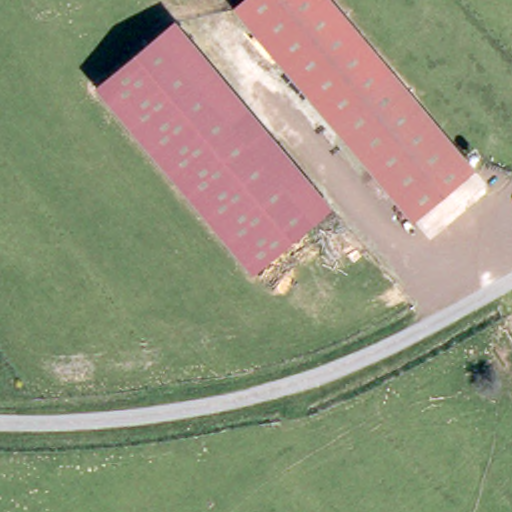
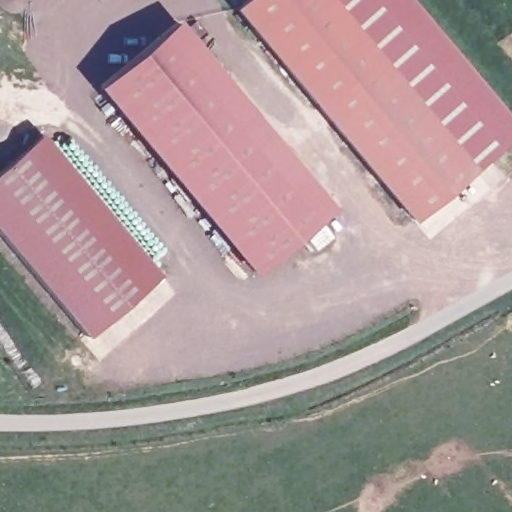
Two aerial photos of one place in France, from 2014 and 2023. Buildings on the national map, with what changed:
unchanged [(245,0),(334,0),(475,166),(414,215),(237,6),(245,0)]
new [(512,118),(512,138),(475,166),(334,0),(413,0),(512,118)]
unchanged [(94,87),(174,20),(330,209),(251,275),(94,87)]
new [(87,335),(0,232),(0,167),(42,131),(160,273),(87,335)]

